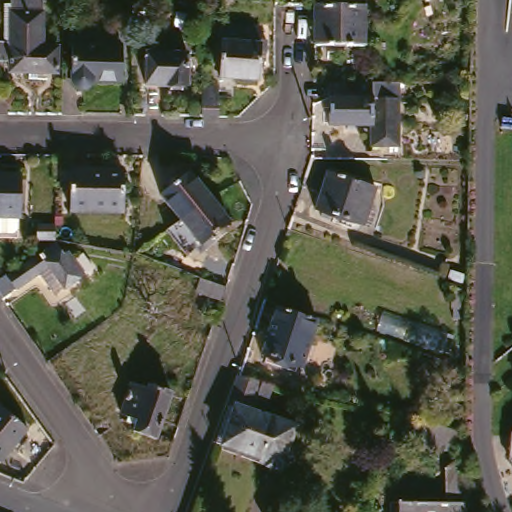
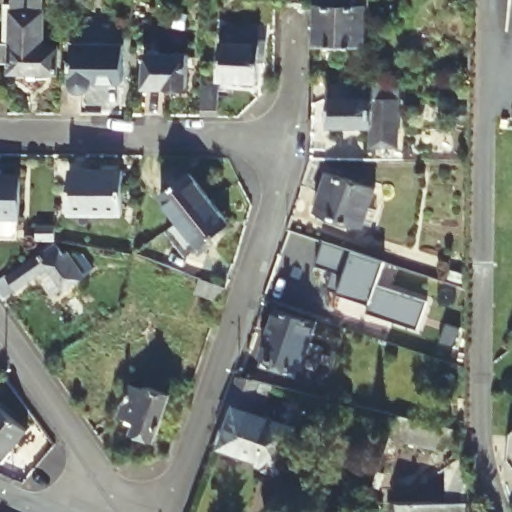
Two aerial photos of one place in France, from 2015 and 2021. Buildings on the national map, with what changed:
unchanged [(359,53),(309,52),(309,12),(310,2),(343,3),(359,3),(359,53)]
unchanged [(56,80),(8,79),(9,69),(0,69),(0,49),(3,49),(3,12),(10,12),(11,5),(43,6),(43,54),(57,54),(56,80)]
unchanged [(263,69),(261,86),(224,84),(226,48),(227,48),(228,37),(243,39),(243,33),(265,35),(264,46),(271,46),(268,69),(263,69)]
unchanged [(91,87),(90,90),(88,94),(85,96),(81,96),(81,121),(60,120),(61,81),(71,80),(73,51),(122,52),(121,87),(91,87)]
unchanged [(145,87),(145,55),(186,56),(186,87),(145,87)]
unchanged [(0,87),(8,87),(8,115),(0,115),(0,87)]
unchanged [(205,122),(206,93),(223,93),(223,122),(205,122)]
unchanged [(366,154),(366,137),(324,136),(324,94),(393,95),(392,154),(366,154)]
unchanged [(180,222),(159,196),(172,186),(168,181),(184,168),(209,198),(180,222)]
unchanged [(70,213),(70,172),(121,171),(121,214),(70,213)]
unchanged [(371,210),(366,226),(358,224),(357,228),(348,224),(345,231),(325,223),(327,217),(309,211),(322,173),(370,189),(364,208),(371,210)]
unchanged [(13,217),(13,233),(0,233),(0,175),(14,175),(14,217),(13,217)]
unchanged [(233,227),(216,240),(213,235),(199,246),(180,222),(209,198),(233,227)]
unchanged [(31,239),(31,225),(49,225),(49,239),(31,239)]
unchanged [(78,277),(58,291),(58,290),(49,296),(33,274),(0,298),(0,275),(2,278),(34,255),(33,253),(32,251),(48,241),(51,246),(58,256),(61,253),(78,277)]
new [(323,242),(386,263),(378,287),(426,303),(418,330),(366,313),(369,303),(327,289),(333,272),(314,266),(323,242)]
unchanged [(193,293),(198,279),(224,288),(219,302),(193,293)]
unchanged [(263,365),(265,358),(260,356),(276,309),(315,323),(300,370),(295,368),(293,375),(273,368),(263,365)]
unchanged [(436,351),(441,334),(453,337),(448,355),(436,351)]
unchanged [(293,458),(290,467),(283,464),(278,479),(258,472),(260,467),(214,450),(236,383),(273,392),(268,406),(257,403),(253,416),(295,431),(287,455),(293,458)]
unchanged [(133,442),(134,437),(125,434),(128,429),(120,426),(131,396),(146,401),(148,397),(169,404),(154,450),(133,442)]
unchanged [(456,427),(456,407),(464,407),(464,411),(464,427),(456,427)]
unchanged [(0,462),(0,418),(21,436),(0,462)]
unchanged [(393,512),(393,510),(448,511),(448,476),(459,476),(460,463),(389,446),(397,422),(463,438),(464,512),(393,512)]
unchanged [(503,460),(505,435),(512,429),(512,470),(503,460)]

